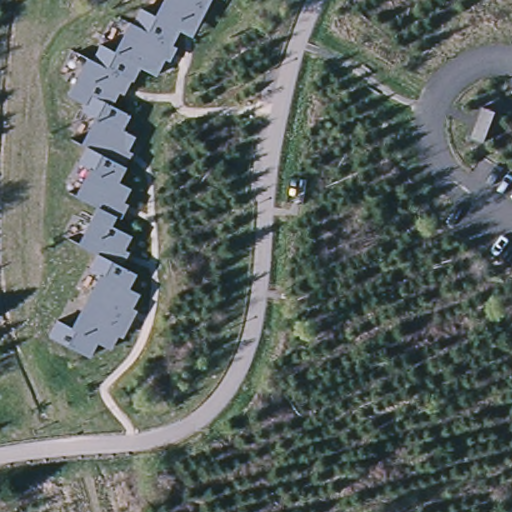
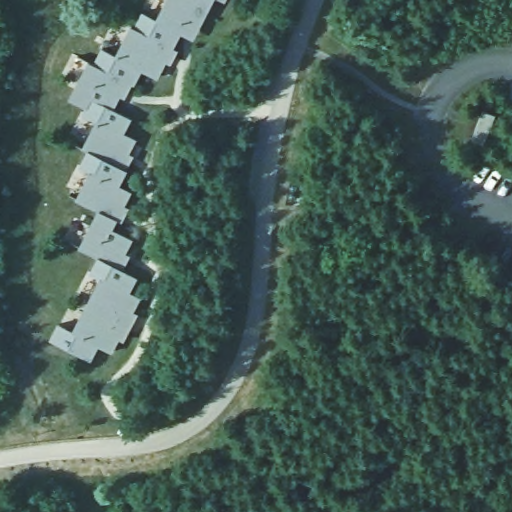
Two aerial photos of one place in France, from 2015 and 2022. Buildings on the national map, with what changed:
unchanged [(72,331),(102,277),(87,272),(94,257),(80,249),(97,211),(75,200),(91,170),(79,164),(85,152),(82,150),(100,117),(85,108),(68,99),(87,62),(92,65),(102,50),(117,58),(133,27),(141,10),(157,20),(166,0),(212,0),(192,39),(180,31),(158,76),(142,70),(126,99),(120,96),(114,110),(132,118),(123,132),(137,139),(128,158),(93,142),(89,151),(128,171),(121,186),(130,191),(113,230),(132,241),(126,254),(130,257),(127,261),(107,250),(100,257),(138,278),(130,293),(139,300),(133,313),(138,316),(124,342),(117,339),(110,356),(97,348),(91,361),(50,339),(58,323),(72,331)]
unchanged [(223,2),(220,0),(225,0),(223,2)]

